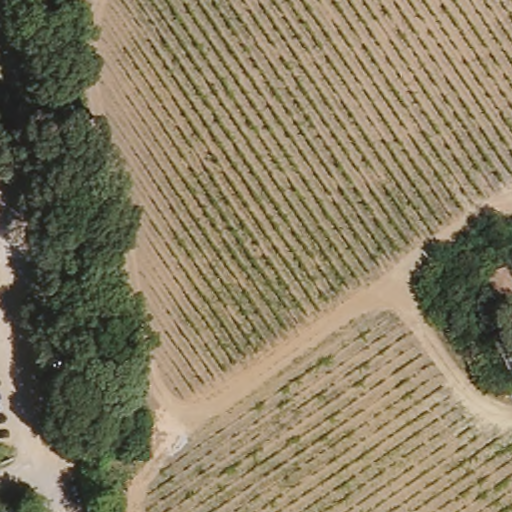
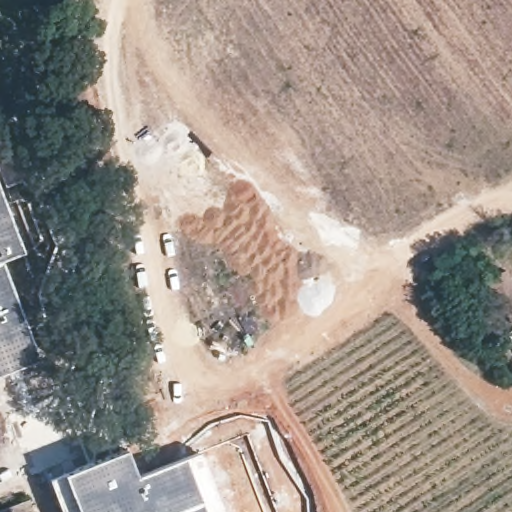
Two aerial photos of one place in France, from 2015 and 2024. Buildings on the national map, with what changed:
new [(4,262),(41,360),(0,376),(0,183),(25,253),(4,262)]
unchanged [(502,357),(512,353),(512,372),(509,373),(502,357)]
new [(137,477),(199,451),(223,512),(76,512),(63,472),(127,450),(137,477)]
new [(76,512),(61,512),(49,478),(63,472),(76,512)]

